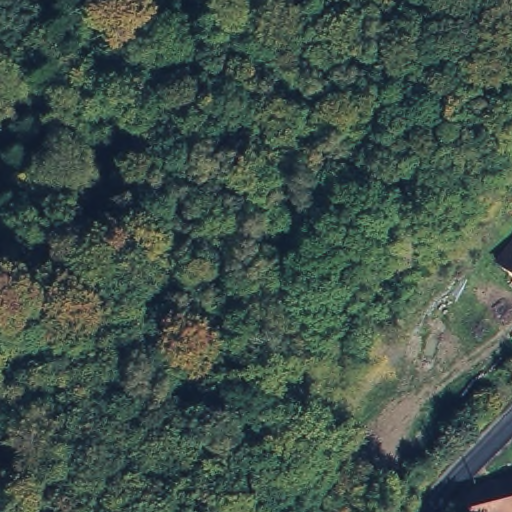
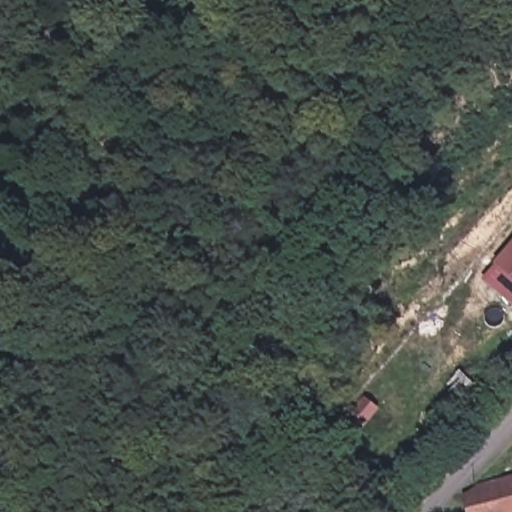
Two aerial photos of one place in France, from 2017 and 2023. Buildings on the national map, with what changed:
unchanged [(498,259),(512,242),(512,273),(498,259)]
unchanged [(482,481),(512,473),(512,512),(472,512),(467,493),(482,481)]

